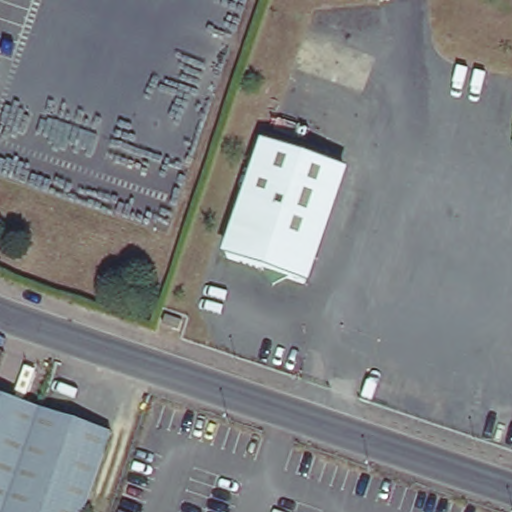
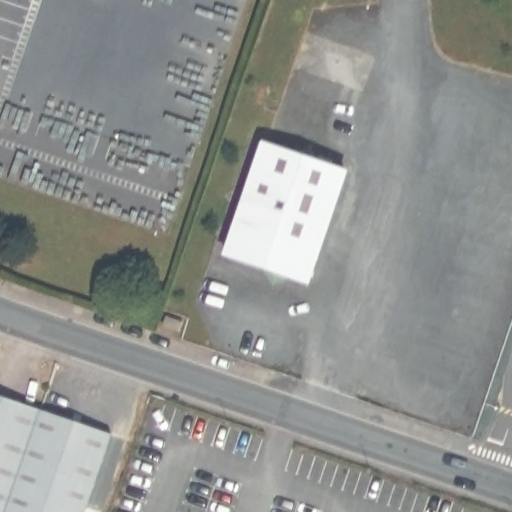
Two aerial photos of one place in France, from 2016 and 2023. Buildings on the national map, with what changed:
unchanged [(352,175),(309,288),(295,282),(274,292),(265,273),(232,258),(275,146),(352,175)]
unchanged [(165,305),(160,320),(148,316),(153,300),(165,305)]
unchanged [(106,437),(80,512),(0,512),(0,400),(106,437)]

